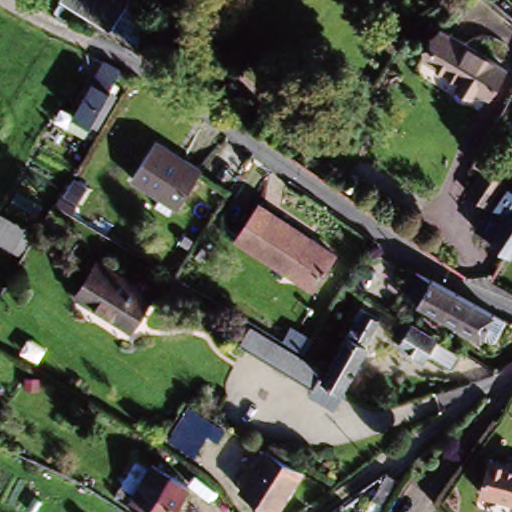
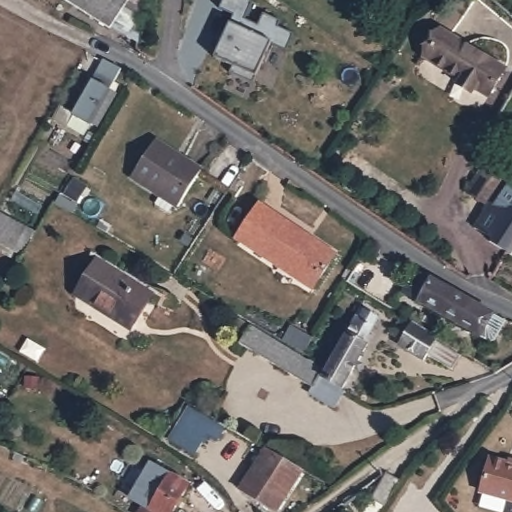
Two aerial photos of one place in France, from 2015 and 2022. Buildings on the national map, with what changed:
unchanged [(109,26),(71,0),(126,0),(128,1),(109,26)]
new [(218,10),(223,0),(246,0),(253,3),(245,20),(258,26),(263,15),(281,22),(278,29),(293,35),(286,53),(270,46),(251,85),(228,74),(231,67),(213,59),(233,16),(218,10)]
unchanged [(485,93),(472,86),(468,92),(454,83),(457,77),(422,57),(439,29),(502,65),(485,93)]
unchanged [(112,76),(82,129),(68,121),(95,69),(112,76)]
unchanged [(152,142),(201,170),(179,206),(131,179),(152,142)]
unchanged [(501,249),(487,239),(487,237),(469,224),(482,206),(464,194),(473,180),(469,179),(476,169),(480,172),(499,184),(497,186),(512,197),(512,237),(509,236),(501,249)]
unchanged [(259,206),(333,255),(308,292),(234,242),(259,206)]
unchanged [(0,244),(0,211),(35,232),(23,257),(0,244)]
unchanged [(429,279),(504,320),(499,329),(486,322),(478,335),(394,287),(389,293),(378,286),(392,260),(406,267),(428,280),(429,279)]
unchanged [(95,265),(151,297),(129,331),(75,299),(95,265)]
unchanged [(328,364),(356,318),(352,315),(359,303),(379,314),(363,339),(368,342),(342,385),(322,374),(328,364)]
unchanged [(444,368),(419,352),(416,358),(403,348),(391,341),(394,336),(384,330),(386,328),(394,313),(404,320),(431,335),(428,340),(453,355),(444,368)]
unchanged [(342,385),(343,387),(334,403),(308,388),(311,381),(237,336),(246,321),(321,366),(318,372),(322,374),(342,385)]
unchanged [(227,428),(221,437),(211,432),(196,453),(173,438),(191,406),(227,428)]
unchanged [(274,457),(299,473),(275,512),(267,512),(236,493),(263,450),(274,457)]
unchanged [(512,496),(485,489),(494,455),(512,460),(512,496)]
unchanged [(174,512),(143,512),(146,507),(151,510),(153,505),(136,495),(158,461),(174,471),(193,483),(174,512)]
unchanged [(409,477),(389,500),(385,496),(377,489),(397,466),(403,472),(409,477)]

